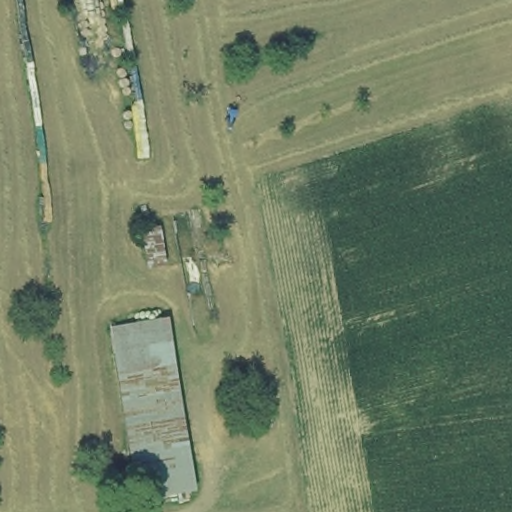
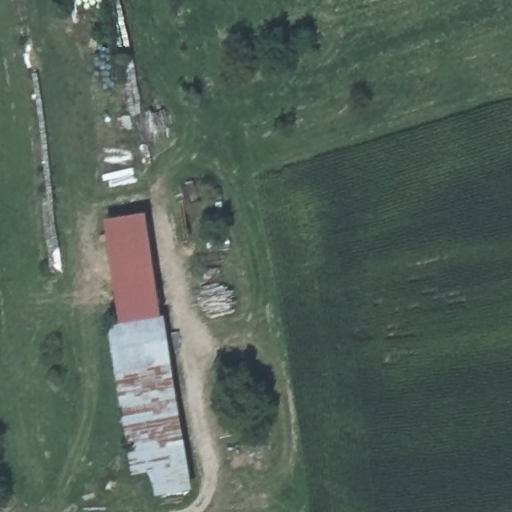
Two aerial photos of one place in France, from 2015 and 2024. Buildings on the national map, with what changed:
new [(146,216),(161,319),(119,325),(105,223),(146,216)]
unchanged [(192,491),(142,501),(113,326),(164,318),(192,491)]

